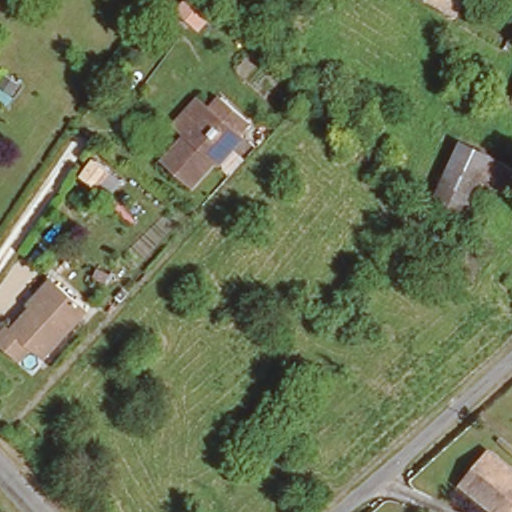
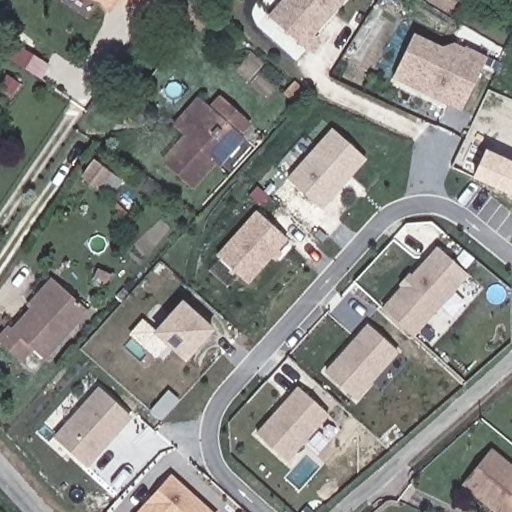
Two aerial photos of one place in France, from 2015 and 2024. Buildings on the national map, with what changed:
new [(93,4),(82,0),(117,0),(102,14),(93,4)]
new [(121,0),(158,0),(147,17),(121,0)]
new [(345,0),(314,34),(319,39),(308,51),(270,18),(286,0),(345,0)]
unchanged [(421,0),(462,0),(452,18),(421,0)]
new [(443,47),(453,44),(466,50),(467,47),(488,57),(483,66),(463,109),(394,77),(414,34),(443,47)]
unchanged [(508,101),(512,92),(512,102),(508,101)]
unchanged [(215,95),(244,120),(233,133),(237,136),(212,165),(208,161),(185,186),(156,159),(179,134),(174,130),(167,124),(193,95),(200,102),(205,106),(215,95)]
new [(334,129),(367,158),(322,207),(290,178),(334,129)]
unchanged [(490,184),(478,179),(489,155),(512,167),(512,195),(490,184)]
new [(259,211),(288,237),(249,281),(220,255),(259,211)]
unchanged [(456,240),(466,247),(462,253),(461,254),(451,247),(452,245),(456,240)]
new [(439,247),(470,274),(415,334),(385,308),(439,247)]
unchanged [(27,349),(15,362),(0,348),(0,333),(5,327),(9,330),(28,309),(24,305),(47,280),(53,286),(82,312),(39,360),(27,349)]
new [(184,302),(214,328),(187,358),(157,332),(184,302)]
new [(369,325),(399,352),(358,398),(328,371),(369,325)]
new [(299,387),(329,413),(288,459),(258,433),(299,387)]
new [(101,389),(132,418),(89,466),(58,438),(101,389)]
unchanged [(488,452),(512,472),(512,512),(495,512),(461,484),(488,452)]
new [(172,477),(212,512),(140,512),(172,477)]

